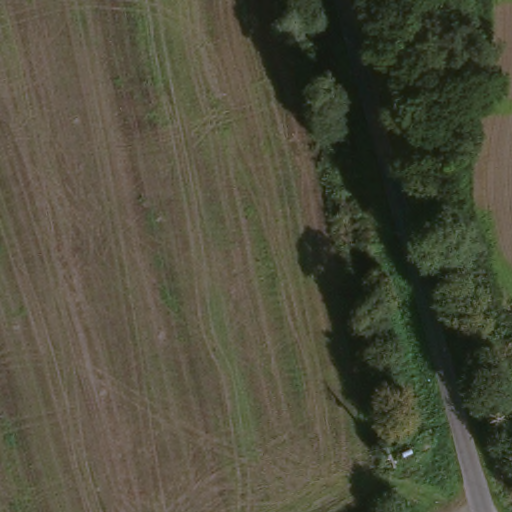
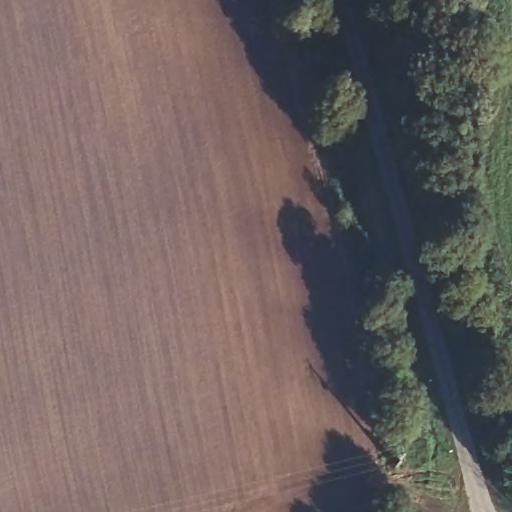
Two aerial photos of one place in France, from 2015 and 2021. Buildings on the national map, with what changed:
[]

